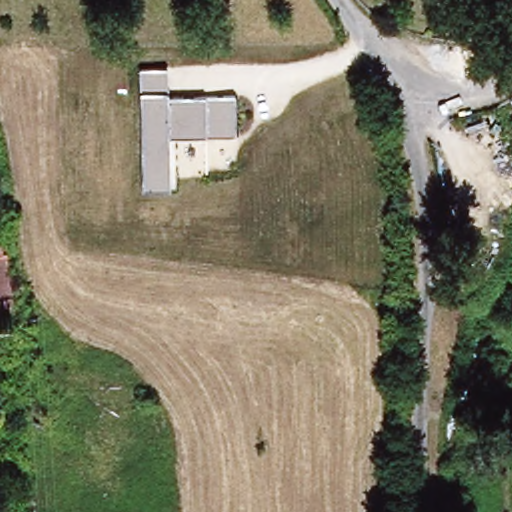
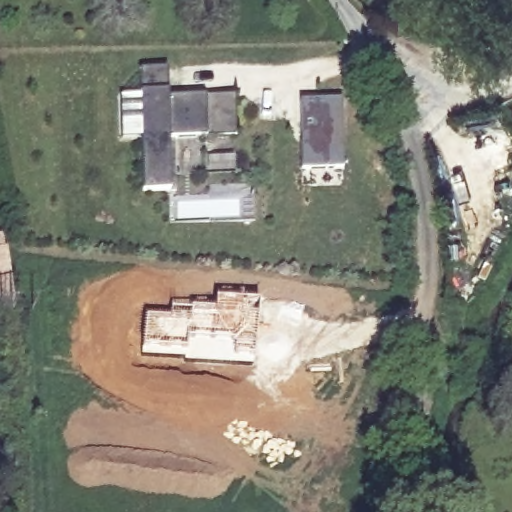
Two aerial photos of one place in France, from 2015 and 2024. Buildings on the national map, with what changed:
unchanged [(236,137),(167,140),(168,192),(143,193),(139,68),(167,68),(168,96),(233,93),(236,137)]
new [(341,97),(343,168),(300,169),(298,100),(341,97)]
unchanged [(18,318),(0,320),(0,244),(4,244),(5,257),(11,257),(18,318)]
new [(144,315),(167,316),(168,307),(213,308),(213,297),(258,301),(255,366),(184,360),(142,354),(144,315)]

